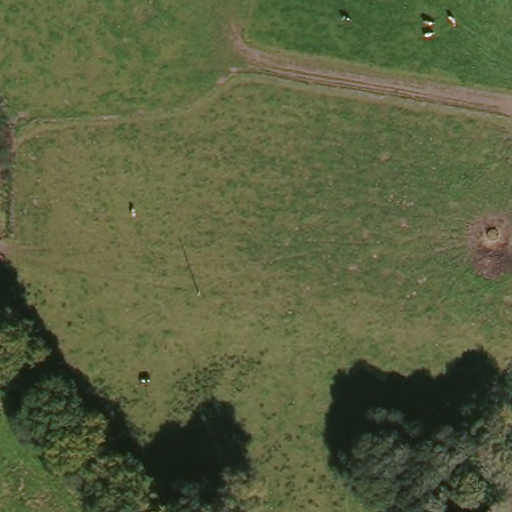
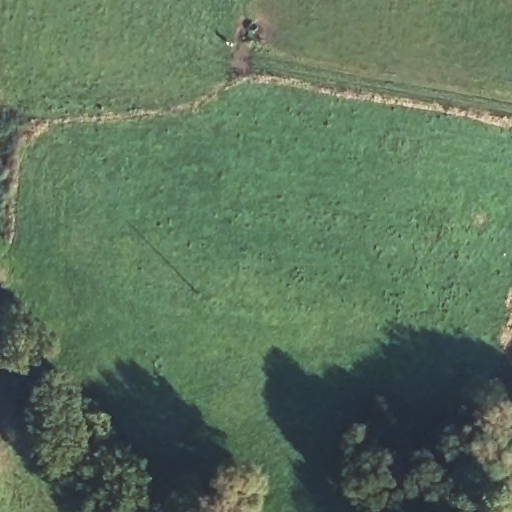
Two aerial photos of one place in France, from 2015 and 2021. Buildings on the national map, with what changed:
[]

